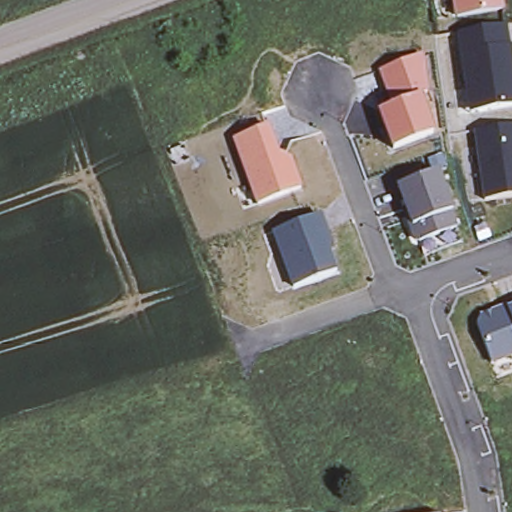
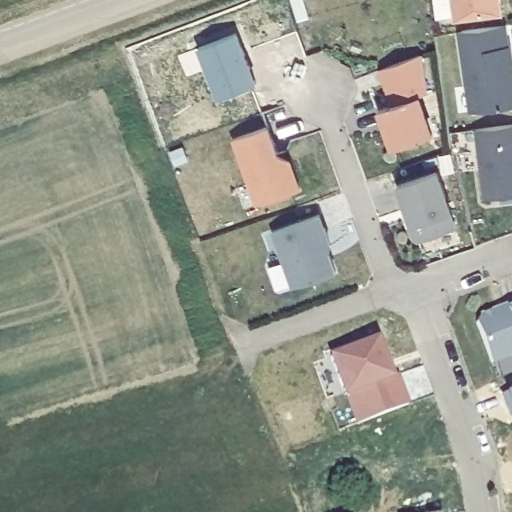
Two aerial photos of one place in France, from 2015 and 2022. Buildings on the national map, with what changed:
unchanged [(454,17),(452,0),(505,0),(506,10),(454,17)]
unchanged [(467,117),(455,34),(510,25),(512,44),(512,108),(467,117)]
new [(254,82),(220,93),(205,50),(237,37),(254,82)]
unchanged [(377,110),(391,104),(378,70),(422,54),(427,91),(421,96),(434,133),(392,149),(377,110)]
unchanged [(481,200),(474,130),(512,124),(512,195),(481,200)]
unchanged [(232,140),(269,125),(279,153),(292,160),(301,189),(257,205),(232,140)]
unchanged [(394,190),(439,174),(459,226),(415,245),(394,190)]
unchanged [(272,232),(322,215),(332,247),(330,253),(337,271),(292,287),(272,232)]
unchanged [(477,316),(510,303),(512,308),(512,358),(492,366),(477,316)]
new [(410,403),(357,423),(345,395),(329,355),(378,336),(392,378),(400,375),(410,403)]

